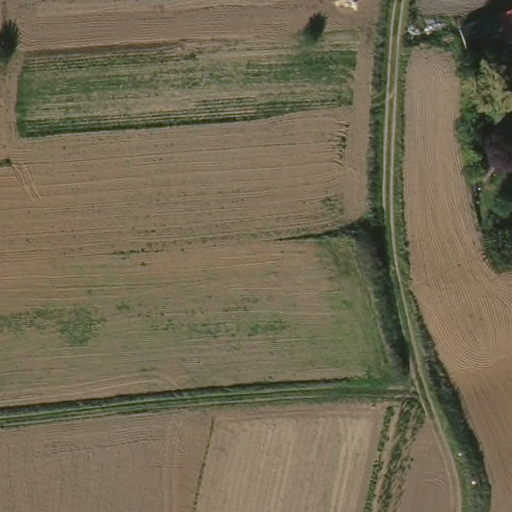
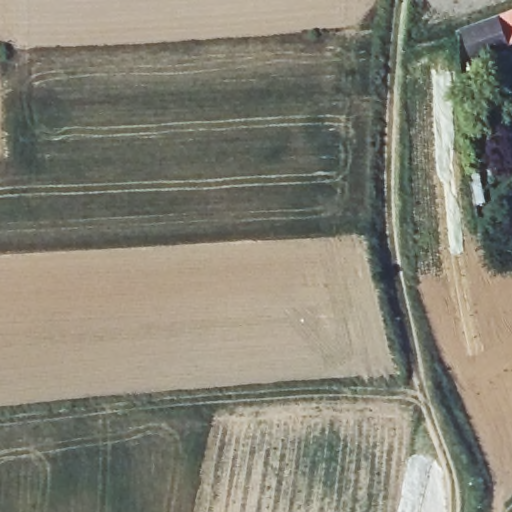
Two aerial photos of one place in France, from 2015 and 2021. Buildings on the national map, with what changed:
unchanged [(501,18),(511,51),(471,65),(461,33),(501,18)]

